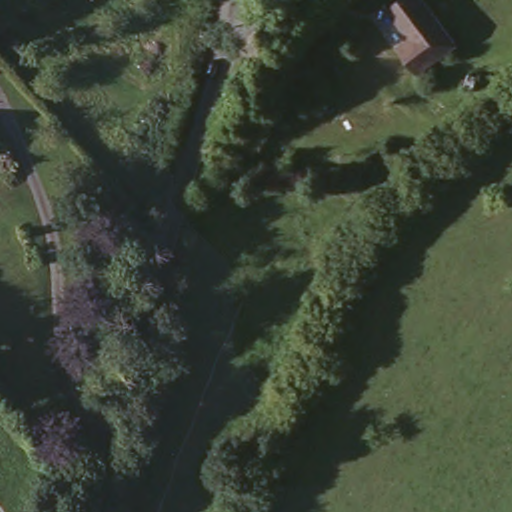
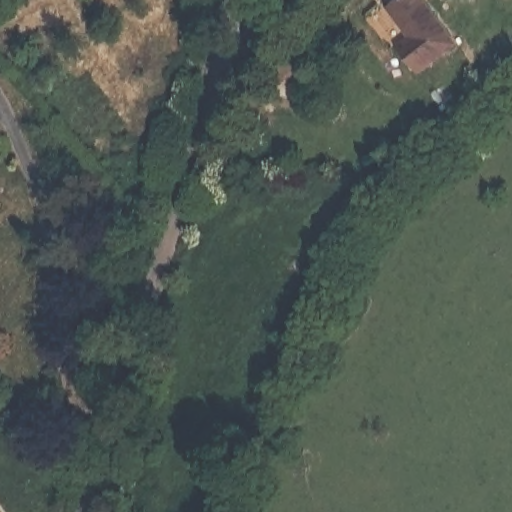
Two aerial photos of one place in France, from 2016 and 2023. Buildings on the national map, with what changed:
unchanged [(456,39),(418,66),(398,42),(410,33),(388,1),(390,0),(429,0),(456,39)]

